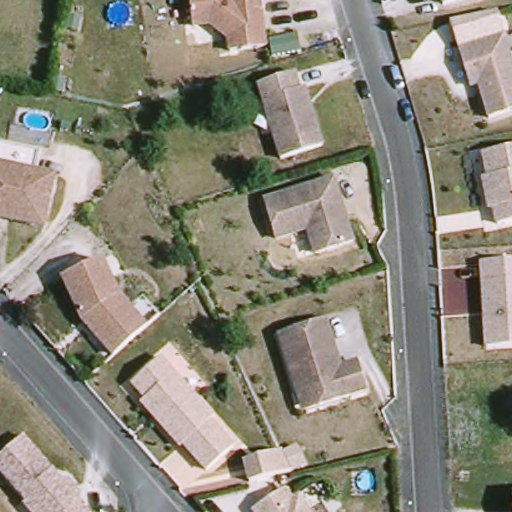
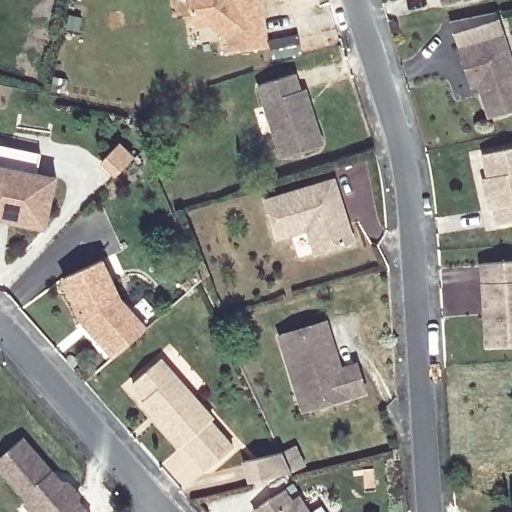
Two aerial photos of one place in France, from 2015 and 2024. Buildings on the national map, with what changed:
unchanged [(198,27),(195,0),(265,0),(270,40),(270,44),(270,48),(236,53),(203,57),(198,27)]
unchanged [(479,3),(440,10),(438,0),(479,0),(479,3)]
unchanged [(461,53),(504,38),(512,61),(512,114),(492,120),(484,96),(481,86),(473,89),(461,53)]
unchanged [(288,160),(265,88),(264,87),(301,75),(306,92),(311,90),(314,98),(318,112),(329,146),(288,160)]
unchanged [(8,222),(0,220),(0,145),(4,146),(47,155),(43,175),(63,179),(53,221),(51,231),(8,222)]
new [(120,146),(135,160),(118,178),(103,164),(120,146)]
unchanged [(512,224),(500,226),(497,210),(493,211),(489,194),(487,180),(492,179),(487,155),(512,151),(512,224)]
unchanged [(321,255),(313,231),(283,240),(271,202),(339,181),(346,203),(352,221),(359,243),(321,255)]
unchanged [(79,322),(59,278),(98,261),(115,299),(126,311),(140,299),(156,318),(143,330),(111,358),(88,331),(81,324),(79,322)]
unchanged [(512,346),(488,347),(482,263),(512,262),(512,346)]
unchanged [(303,397),(284,337),(331,323),(343,358),(346,370),(362,365),(371,394),(326,408),(308,413),(303,397)]
unchanged [(161,360),(214,419),(211,422),(234,448),(208,471),(186,445),(183,448),(158,421),(143,404),(147,400),(133,385),(161,360)]
unchanged [(73,481),(81,492),(80,497),(92,512),(29,512),(23,505),(26,501),(0,473),(0,461),(26,436),(64,479),(73,481)]
unchanged [(297,445),(304,465),(290,471),(251,484),(244,462),(283,451),(297,445)]
unchanged [(259,507),(286,491),(294,503),(301,499),(309,512),(256,512),(255,511),(259,507)]

